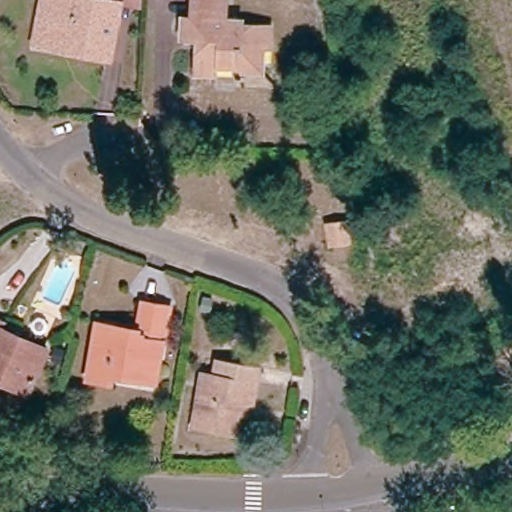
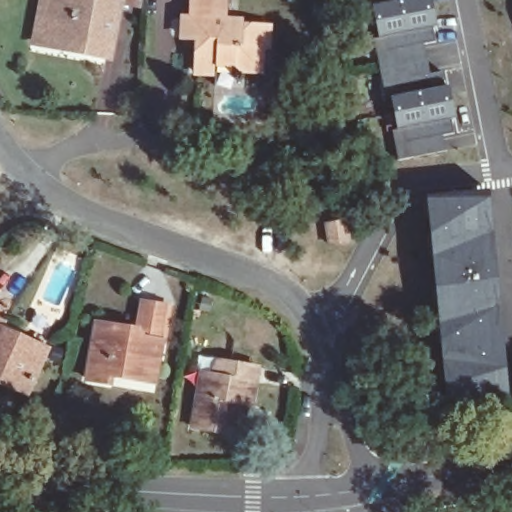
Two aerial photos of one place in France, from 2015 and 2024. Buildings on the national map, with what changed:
unchanged [(43,0),(115,0),(104,54),(78,50),(37,44),(37,36),(43,0)]
unchanged [(186,18),(193,18),(194,0),(228,0),(228,22),(246,23),(245,28),(271,29),(271,49),(264,49),(263,72),(234,72),(234,67),(218,67),(218,73),(197,73),(198,38),(185,38),(186,18)]
new [(375,42),(378,41),(373,7),(367,8),(365,0),(431,0),(436,26),(432,28),(434,42),(423,44),(430,76),(442,74),(445,87),(448,86),(455,118),(450,119),(453,134),(442,135),(444,152),(398,163),(375,42)]
new [(508,400),(445,406),(425,197),(487,189),(508,400)]
unchanged [(359,226),(362,245),(345,246),(343,228),(359,226)]
unchanged [(140,380),(107,372),(105,379),(86,375),(98,320),(117,324),(116,329),(140,334),(147,303),(164,307),(157,340),(162,341),(158,361),(153,383),(140,380)]
unchanged [(49,341),(34,388),(9,381),(0,378),(0,328),(49,341)]
unchanged [(211,380),(221,381),(224,366),(267,373),(261,407),(249,405),(242,436),(204,430),(211,380)]
unchanged [(458,504),(459,512),(440,512),(440,508),(458,504)]

